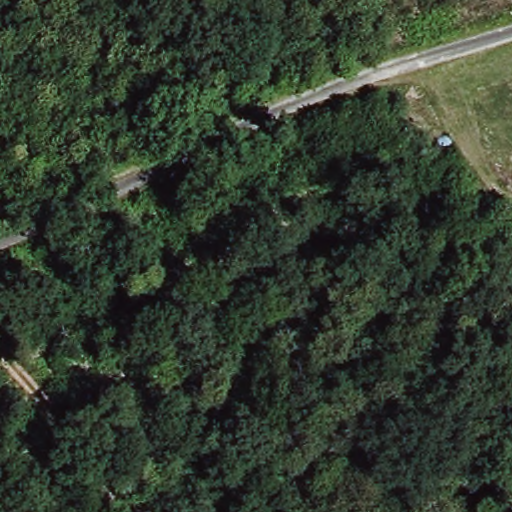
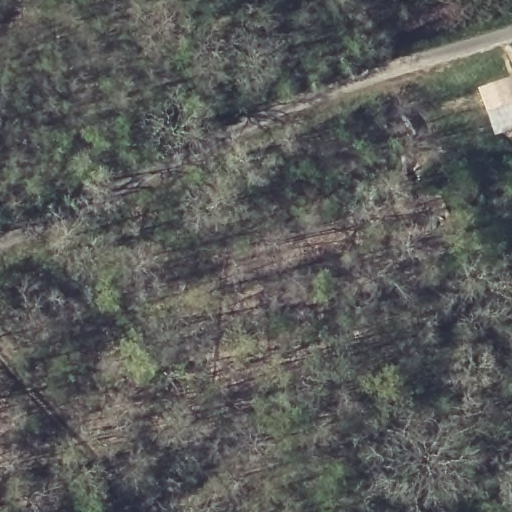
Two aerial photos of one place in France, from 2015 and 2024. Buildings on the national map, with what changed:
new [(477,87),(512,75),(512,129),(494,135),(477,87)]

